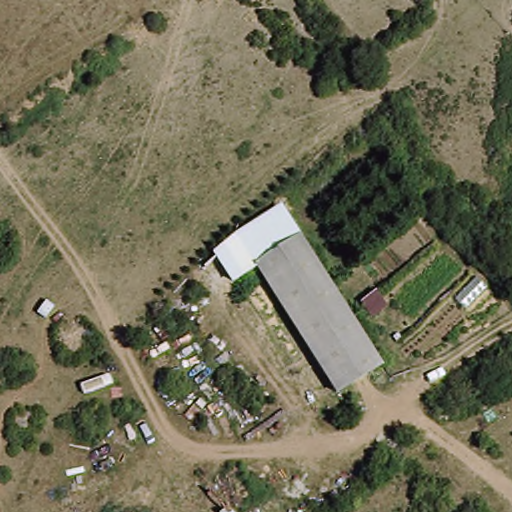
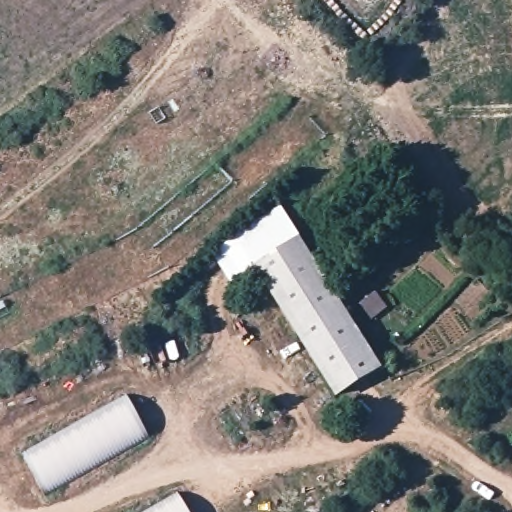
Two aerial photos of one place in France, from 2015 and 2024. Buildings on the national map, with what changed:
unchanged [(254,264),(258,269),(237,281),(216,250),(236,235),(286,204),(304,230),(254,264)]
unchanged [(389,366),(341,397),(254,264),(304,230),(389,366)]
new [(150,436),(44,496),(23,455),(125,396),(150,436)]
new [(194,512),(145,512),(181,490),(194,512)]

